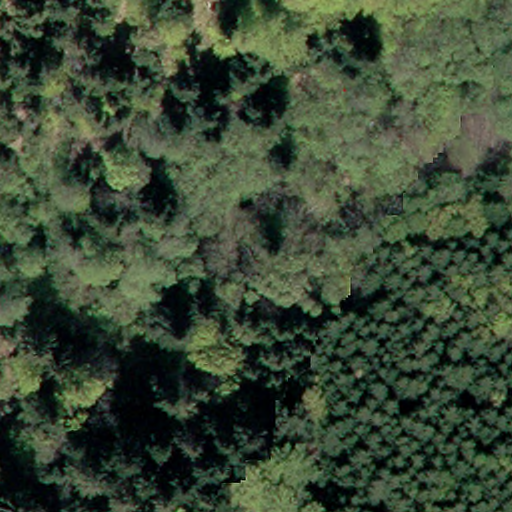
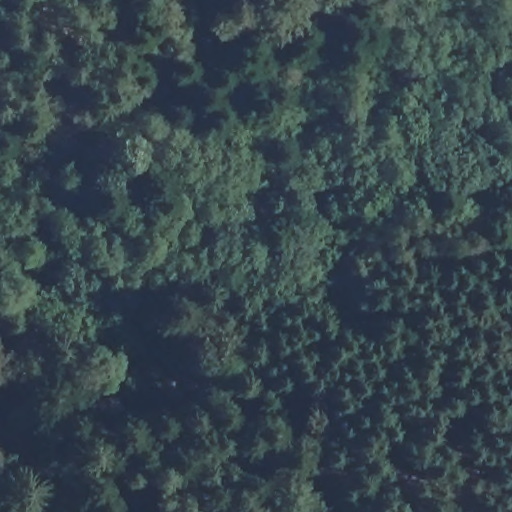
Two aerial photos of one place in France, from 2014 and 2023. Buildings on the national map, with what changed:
unchanged [(287,189),(296,207),(256,228),(245,211),(287,189)]

